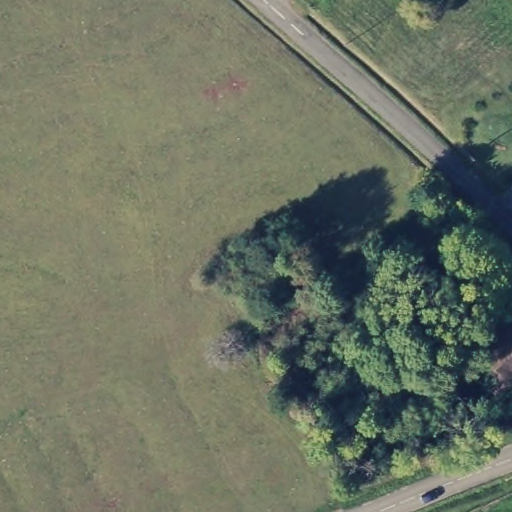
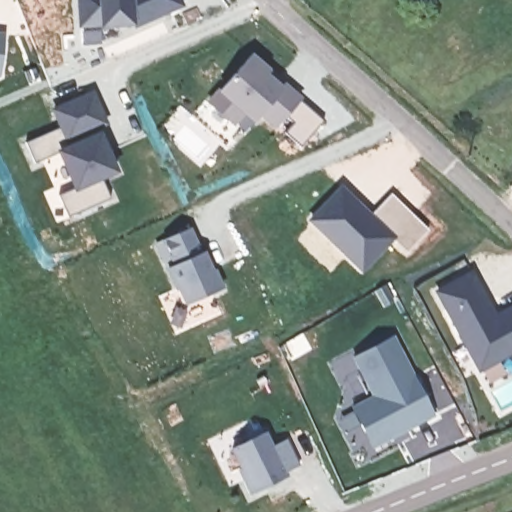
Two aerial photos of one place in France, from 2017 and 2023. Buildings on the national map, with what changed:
new [(147,24),(135,24),(135,25),(103,26),(103,24),(82,25),(81,0),(181,0),(185,9),(147,24)]
new [(5,35),(0,72),(0,34),(5,35)]
new [(255,58),(272,74),(269,77),(283,90),(286,86),(303,100),(280,127),(265,114),(257,121),(247,112),(234,124),(212,103),(255,58)]
new [(74,191),(57,151),(69,146),(52,109),(92,93),(107,124),(99,128),(101,134),(119,173),(74,191)]
new [(362,271),(309,219),(342,184),(372,214),(392,194),(429,229),(407,253),(394,240),(362,271)]
new [(195,227),(207,252),(209,250),(218,269),(220,268),(228,287),(192,303),(185,285),(182,286),(162,241),(195,227)]
new [(436,290),(473,270),(497,313),(512,306),(512,354),(480,371),(436,290)]
new [(389,337),(435,412),(410,428),(408,425),(400,430),(402,433),(376,449),(352,411),(374,398),(350,360),(389,337)]
new [(265,433),(272,448),(288,439),(301,464),(285,473),(287,477),(253,494),(240,471),(243,469),(232,449),(265,433)]

